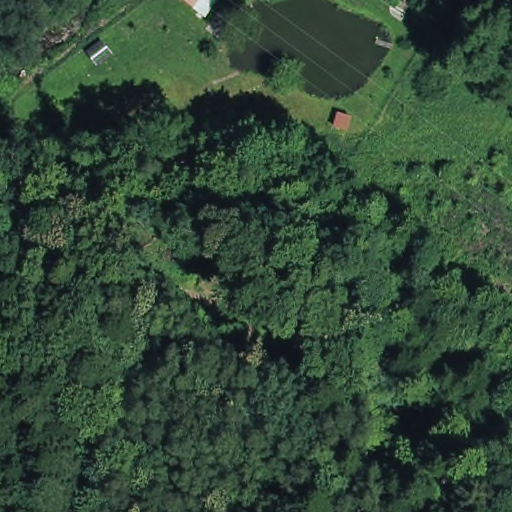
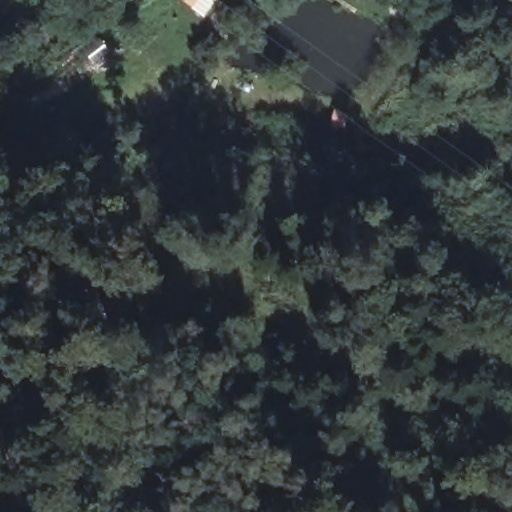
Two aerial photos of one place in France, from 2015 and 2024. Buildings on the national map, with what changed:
unchanged [(205,6),(197,0),(210,0),(208,3),(205,6)]

